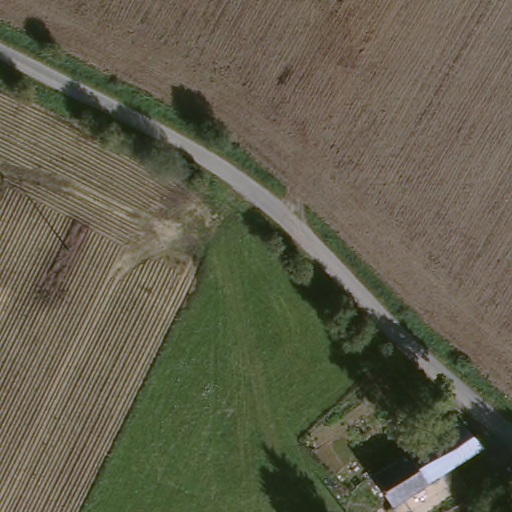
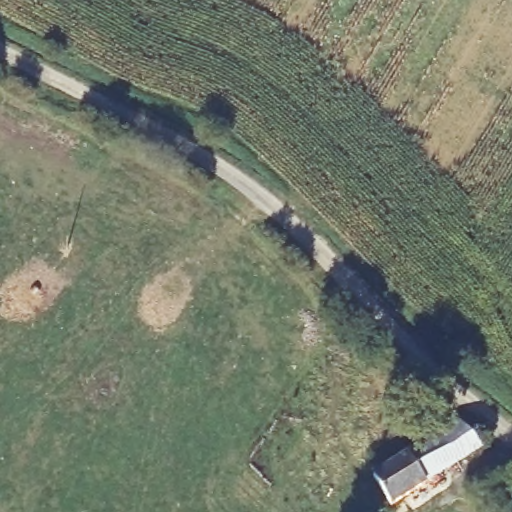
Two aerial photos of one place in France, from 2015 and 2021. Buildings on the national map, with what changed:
unchanged [(379,472),(462,418),(492,445),(402,504),(379,472)]

